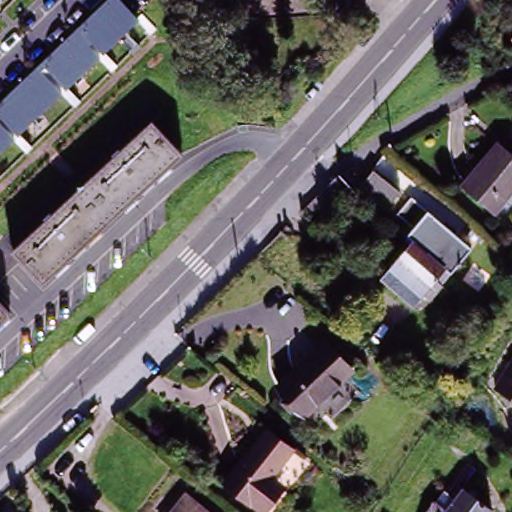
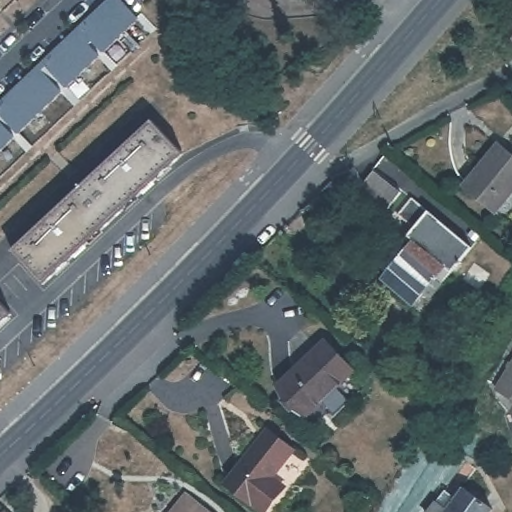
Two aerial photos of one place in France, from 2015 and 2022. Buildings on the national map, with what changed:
unchanged [(0,155),(0,104),(110,0),(119,0),(141,22),(0,155)]
unchanged [(512,16),(512,40),(511,38),(503,30),(503,29),(512,16)]
unchanged [(42,284),(12,251),(152,121),(181,154),(42,284)]
unchanged [(494,148),(512,160),(512,190),(494,215),(462,193),(494,148)]
unchanged [(378,172),(404,193),(387,211),(362,187),(378,172)]
unchanged [(345,175),(355,186),(332,207),(327,202),(315,192),(316,191),(345,175)]
unchanged [(407,248),(399,242),(414,225),(397,212),(411,197),(471,247),(423,303),(410,312),(377,285),(407,248)]
unchanged [(0,328),(0,299),(14,315),(0,328)]
unchanged [(320,343),(351,368),(308,416),(277,392),(320,343)]
unchanged [(492,392),(512,356),(512,403),(492,392)]
unchanged [(278,496),(264,512),(263,512),(252,503),(250,504),(225,482),(268,431),(292,452),(301,459),(279,484),(283,488),(278,496)]
unchanged [(456,510),(452,507),(461,494),(466,497),(467,495),(493,512),(454,512),(456,510)]
unchanged [(208,512),(171,512),(185,495),(208,512)]
unchanged [(438,508),(445,512),(436,512),(438,508)]

